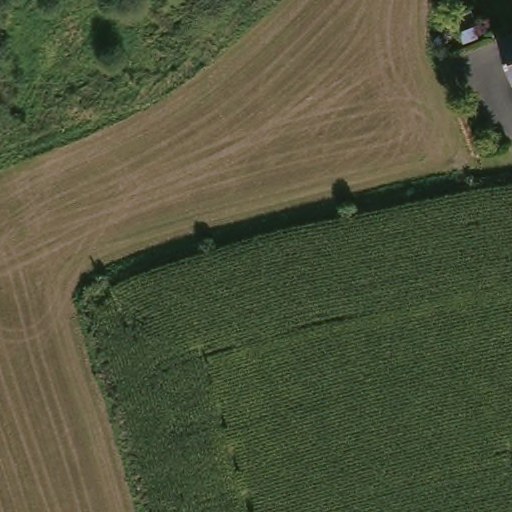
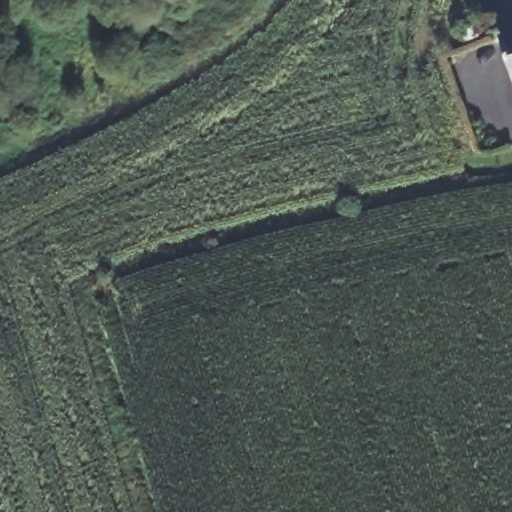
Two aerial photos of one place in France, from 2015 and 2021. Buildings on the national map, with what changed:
unchanged [(512,86),(509,86),(494,40),(512,35),(512,86)]

